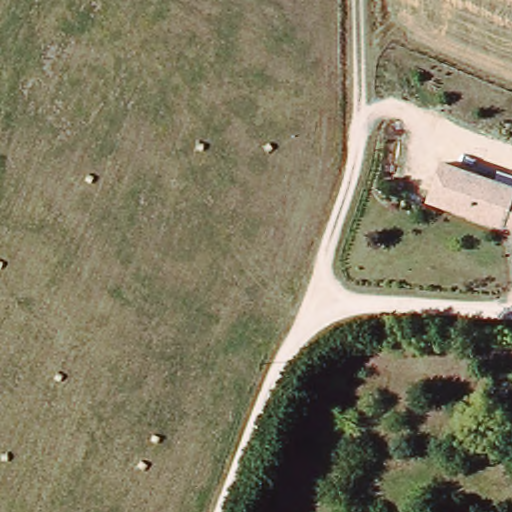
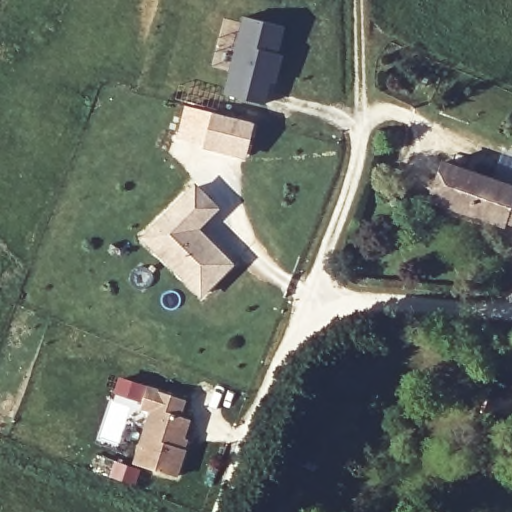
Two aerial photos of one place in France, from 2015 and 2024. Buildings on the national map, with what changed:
new [(244,18),(286,28),(280,52),(285,52),(277,83),(271,82),(266,104),(225,94),(244,18)]
new [(255,125),(247,160),(203,149),(214,114),(255,125)]
unchanged [(502,235),(427,206),(442,164),(492,182),(512,190),(512,227),(505,225),(502,235)]
unchanged [(496,172),(512,178),(512,190),(492,182),(496,172)]
new [(197,184),(220,208),(200,229),(235,264),(202,298),(141,238),(197,184)]
new [(188,400),(184,417),(191,420),(187,438),(190,439),(180,478),(134,465),(151,412),(141,408),(149,386),(188,400)]

